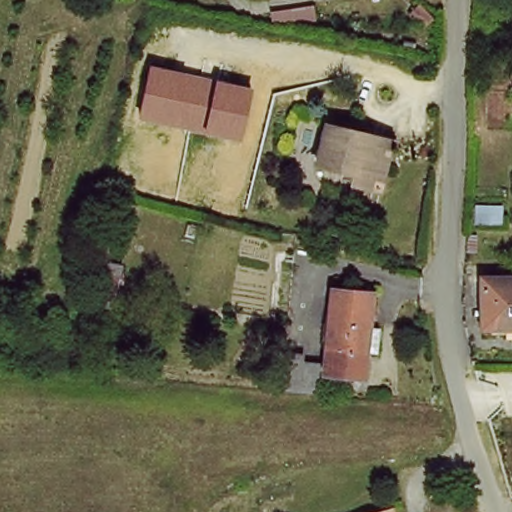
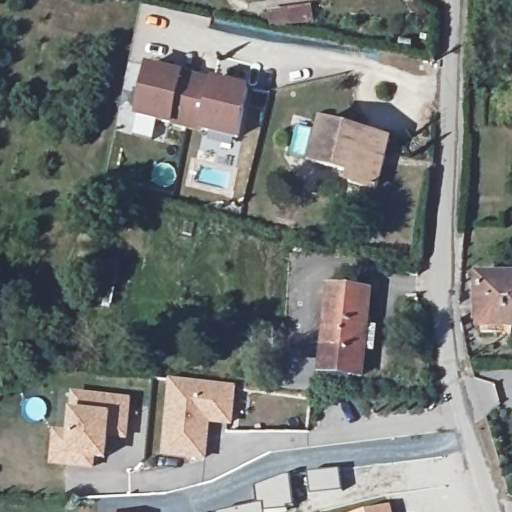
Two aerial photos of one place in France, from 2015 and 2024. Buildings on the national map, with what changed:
unchanged [(149,63),(252,86),(241,140),(137,118),(149,63)]
unchanged [(390,136),(377,186),(344,178),(346,167),(310,159),(316,118),(390,136)]
unchanged [(486,326),(486,276),(512,276),(512,326),(486,326)]
unchanged [(320,375),(328,285),(372,289),(366,380),(320,375)]
unchanged [(273,354),(279,353),(292,354),(291,364),(313,365),(309,389),(272,385),(273,354)]
new [(237,387),(233,426),(213,424),(207,461),(164,457),(171,380),(237,387)]
new [(69,431),(72,411),(74,392),(134,401),(129,441),(109,440),(106,461),(97,460),(96,471),(51,465),(55,431),(69,431)]
unchanged [(394,512),(369,512),(393,505),(394,512)]

